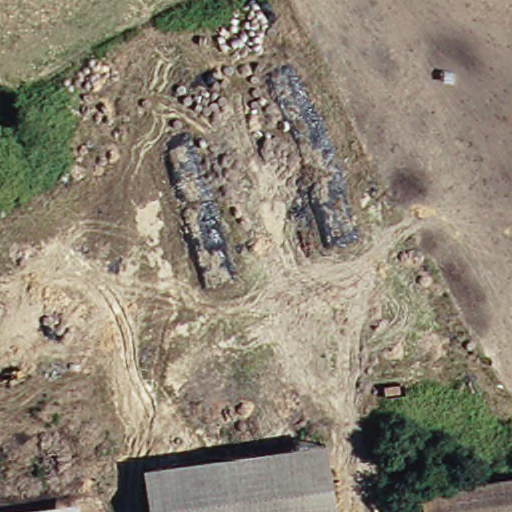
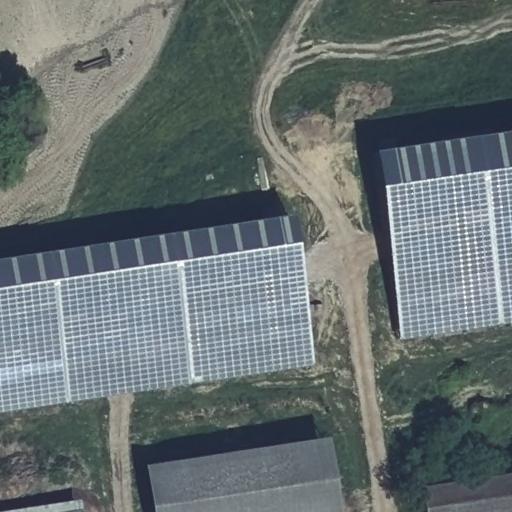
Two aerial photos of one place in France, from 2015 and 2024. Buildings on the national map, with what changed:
new [(408,339),(390,153),(512,134),(512,324),(408,339)]
new [(0,411),(0,261),(302,218),(319,366),(0,411)]
unchanged [(342,512),(159,512),(153,476),(333,449),(342,512)]
unchanged [(428,491),(450,487),(512,477),(512,512),(431,512),(428,491)]
unchanged [(90,510),(91,512),(77,512),(90,510)]

